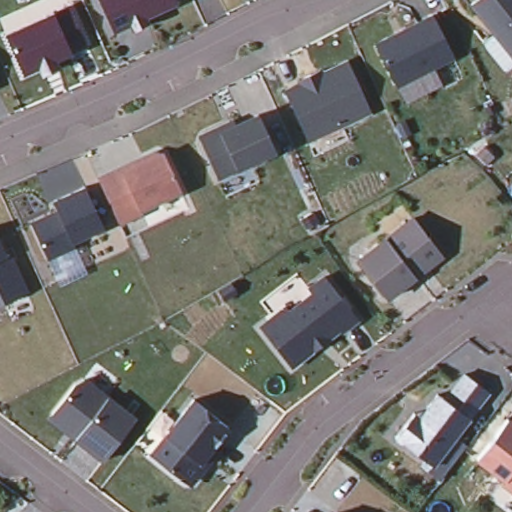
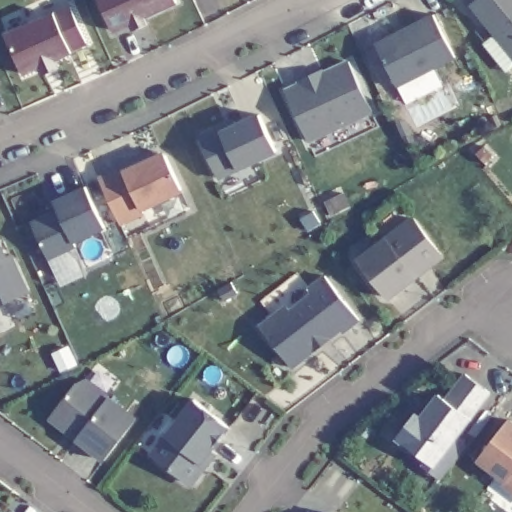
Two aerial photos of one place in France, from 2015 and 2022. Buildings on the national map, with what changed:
unchanged [(131,21),(113,29),(100,0),(176,0),(144,15),(148,22),(134,28),(131,21)]
unchanged [(472,3),(476,0),(512,0),(512,53),(472,3)]
unchanged [(23,72),(6,34),(69,5),(86,41),(70,48),(71,51),(55,58),(58,65),(43,72),(39,65),(23,72)]
unchanged [(455,55),(397,84),(376,42),(434,12),(455,55)]
unchanged [(299,79),(321,69),(323,72),(349,60),(371,110),(343,124),(308,139),(285,89),(301,82),(299,79)]
unchanged [(276,149),(218,176),(201,140),(204,133),(215,128),(234,119),(236,124),(259,113),(276,149)]
unchanged [(143,211),(119,221),(99,177),(123,166),(144,156),(158,150),(164,152),(181,187),(141,206),(143,211)]
unchanged [(31,221),(58,209),(54,200),(86,185),(105,226),(73,240),(75,245),(48,258),(31,221)]
unchanged [(388,296),(359,258),(413,217),(442,255),(428,266),(415,276),(388,296)]
unchanged [(10,253),(28,292),(5,302),(0,304),(0,243),(5,255),(10,253)]
unchanged [(291,366),(260,325),(286,305),(291,310),(313,292),(309,288),(326,275),(359,318),(343,331),(340,328),(329,337),(314,349),(291,366)]
unchanged [(427,460),(402,441),(396,436),(414,412),(421,417),(429,406),(439,393),(446,399),(466,373),(489,391),(445,449),(433,464),(427,460)]
unchanged [(53,412),(61,400),(75,382),(84,378),(136,418),(106,457),(104,459),(76,437),(49,416),(53,412)]
unchanged [(186,481),(151,453),(194,397),(229,425),(211,448),(216,452),(203,469),(194,481),(191,485),(186,481)]
unchanged [(504,482),(506,479),(478,458),(509,418),(512,421),(512,489),(504,482)]

